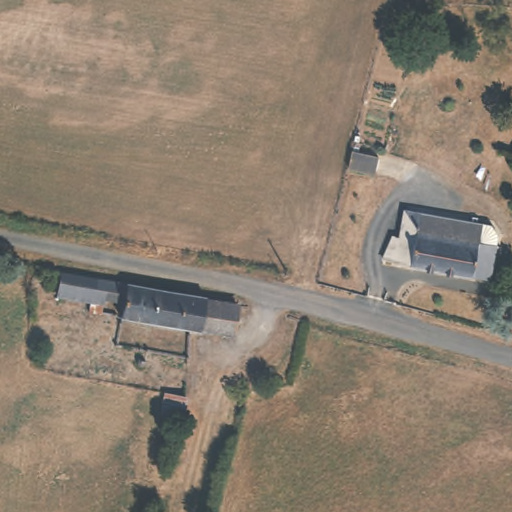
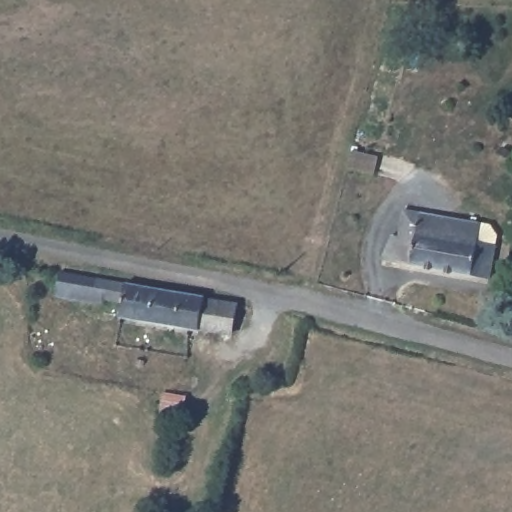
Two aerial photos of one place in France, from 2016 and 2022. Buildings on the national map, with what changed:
unchanged [(369,158),(365,174),(339,168),(343,151),(369,158)]
unchanged [(499,225),(497,243),(493,278),(383,262),(395,234),(403,234),(408,213),(484,224),(499,225)]
unchanged [(188,297),(179,332),(122,320),(125,304),(108,301),(105,318),(90,315),(92,304),(63,299),(69,272),(126,284),(188,297)]
unchanged [(232,307),(226,342),(179,332),(188,297),(232,307)]

